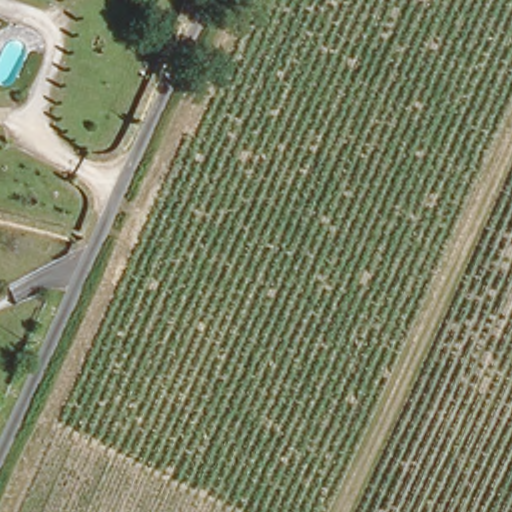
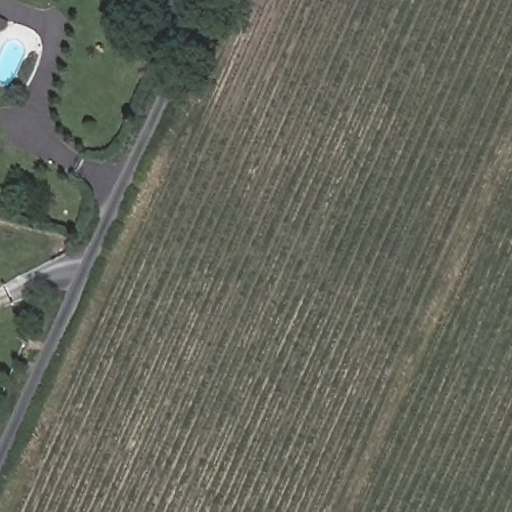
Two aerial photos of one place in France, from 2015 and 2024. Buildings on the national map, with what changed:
[]

